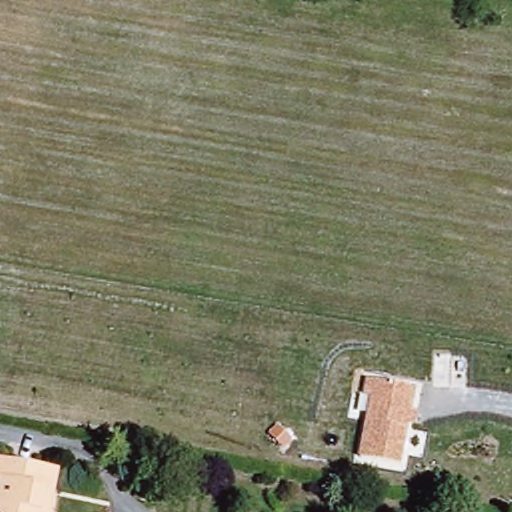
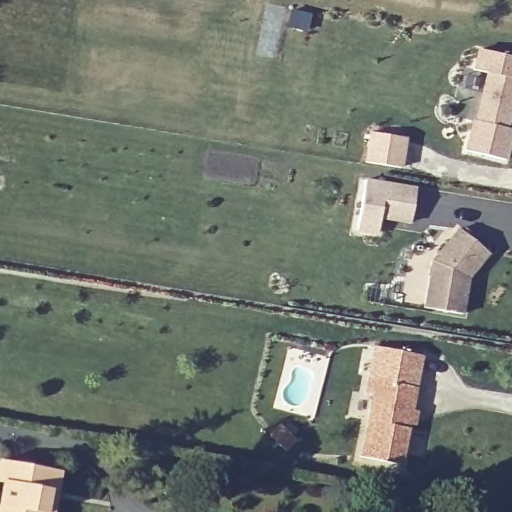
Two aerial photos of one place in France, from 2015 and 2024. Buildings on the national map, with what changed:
new [(473,119),(476,119),(489,71),(476,68),(481,48),(512,57),(512,104),(506,128),(512,130),(504,159),(465,148),(473,119)]
new [(416,188),(411,225),(378,218),(384,182),(416,188)]
new [(489,254),(470,278),(464,314),(423,308),(430,262),(457,228),(489,254)]
new [(365,376),(371,346),(424,356),(418,386),(365,376)]
unchanged [(362,396),(365,376),(418,386),(414,409),(421,411),(417,427),(411,425),(403,464),(360,455),(369,397),(362,396)]
unchanged [(1,501),(5,478),(0,477),(0,459),(65,473),(60,495),(50,493),(47,511),(39,509),(38,512),(10,512),(11,504),(1,501)]

